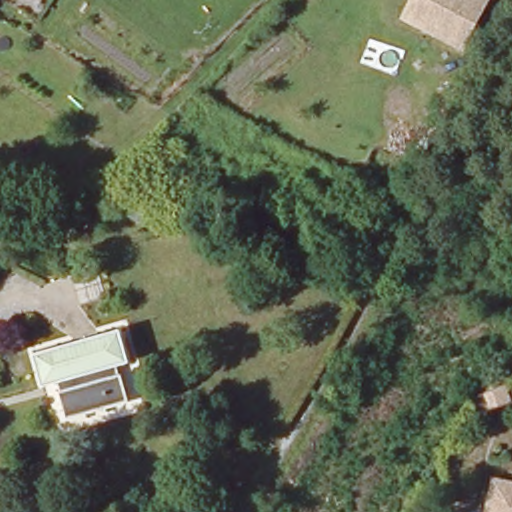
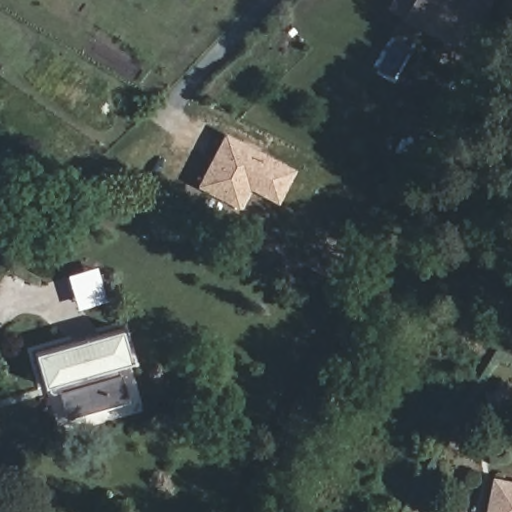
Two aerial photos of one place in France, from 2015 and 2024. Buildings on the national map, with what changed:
unchanged [(411,0),(485,0),(462,45),(433,30),(404,15),(411,0)]
new [(296,171),(279,204),(251,190),(240,207),(196,186),(225,132),(296,171)]
demolished [(387,295),(373,286),(381,273),(394,283),(387,295)]
unchanged [(129,362),(116,367),(126,402),(61,422),(51,387),(38,391),(29,358),(119,331),(129,362)]
unchanged [(496,482),(502,482),(512,485),(512,512),(490,512),(493,499),(496,482)]

